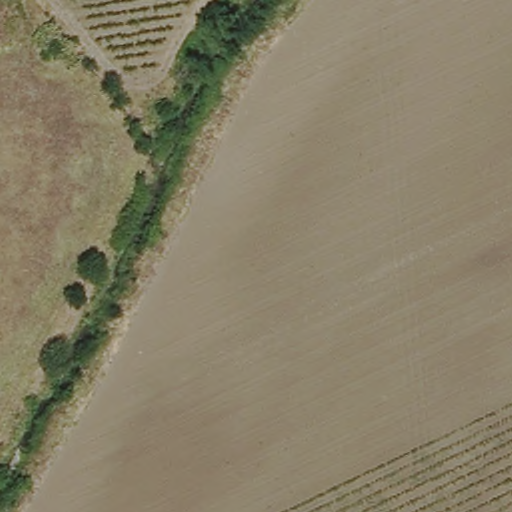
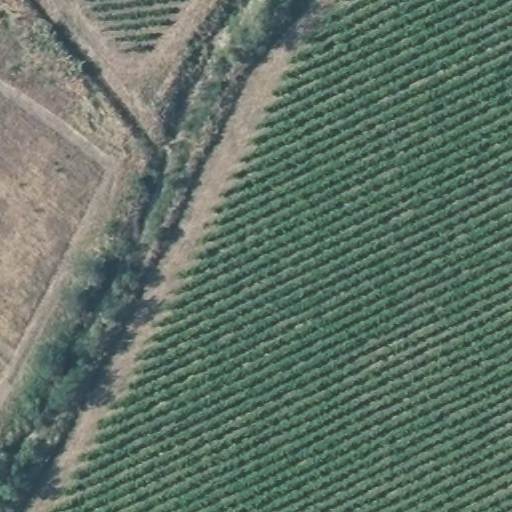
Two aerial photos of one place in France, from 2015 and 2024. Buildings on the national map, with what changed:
[]

